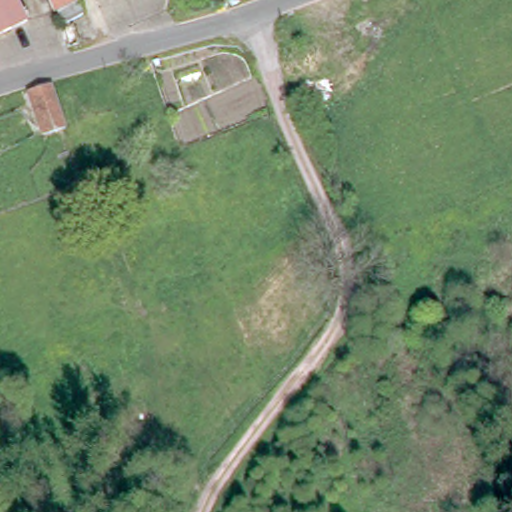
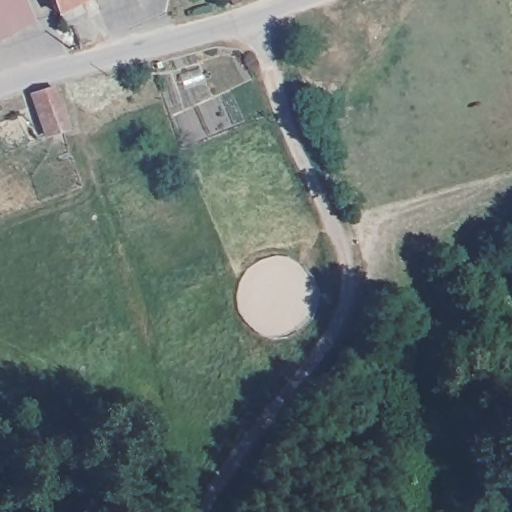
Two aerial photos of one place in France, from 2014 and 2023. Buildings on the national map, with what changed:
unchanged [(31,20),(0,37),(0,0),(20,0),(31,20)]
unchanged [(65,10),(62,10),(57,0),(88,0),(92,6),(70,19),(65,10)]
unchanged [(233,5),(231,0),(243,0),(233,5)]
unchanged [(32,96),(55,89),(68,127),(46,135),(32,96)]

